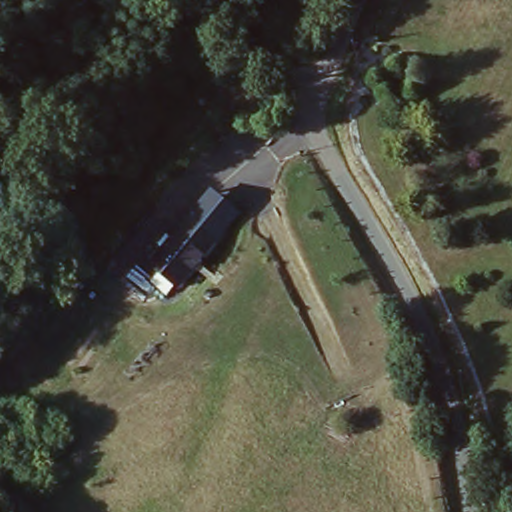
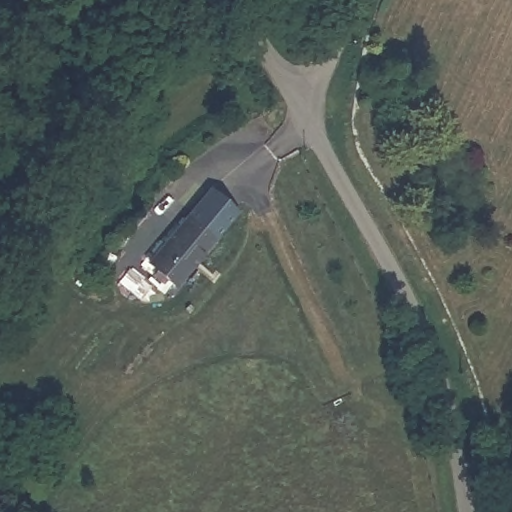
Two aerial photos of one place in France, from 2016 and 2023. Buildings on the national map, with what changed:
unchanged [(210,187),(238,213),(214,243),(185,223),(210,187)]
unchanged [(214,243),(177,290),(150,270),(185,223),(214,243)]

